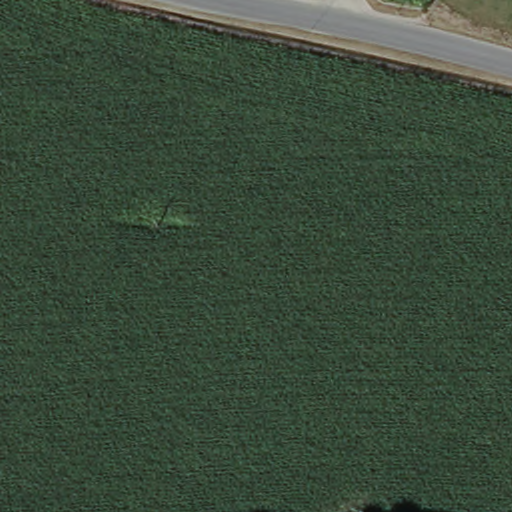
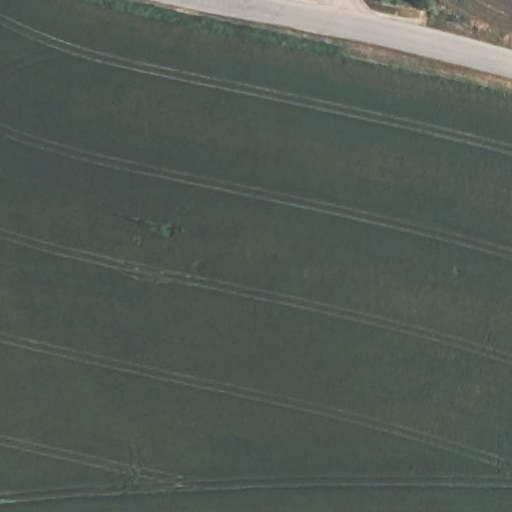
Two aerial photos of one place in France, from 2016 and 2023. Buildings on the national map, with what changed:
[]

